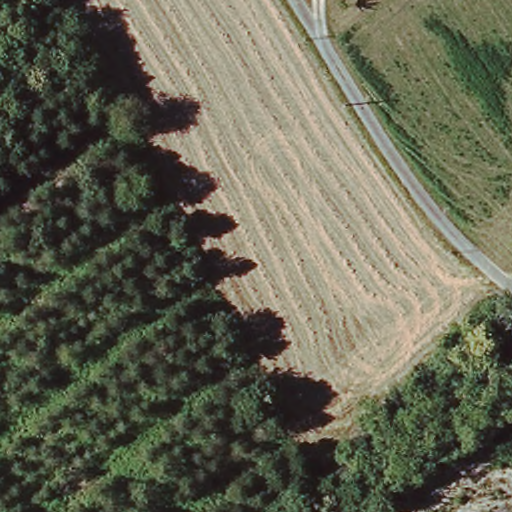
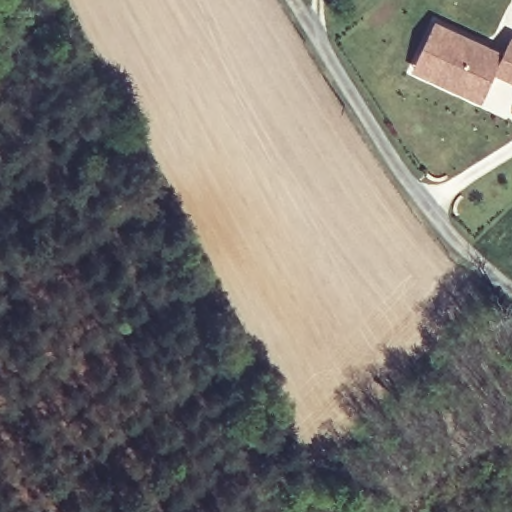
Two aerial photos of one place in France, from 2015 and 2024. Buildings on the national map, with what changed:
new [(507,6),(510,0),(512,0),(512,9),(507,6)]
new [(413,72),(435,25),(504,56),(511,39),(512,40),(512,80),(498,74),(491,90),(485,104),(465,94),(413,72)]

